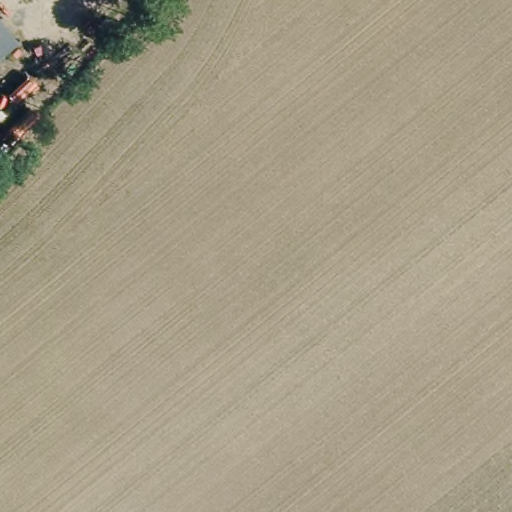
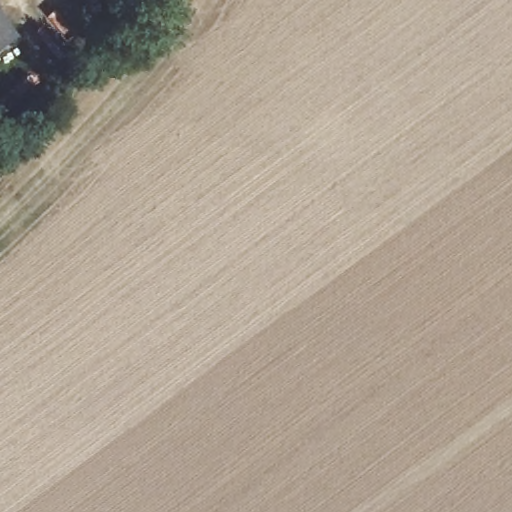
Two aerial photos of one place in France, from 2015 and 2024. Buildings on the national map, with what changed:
unchanged [(0,53),(0,22),(14,40),(0,53)]

